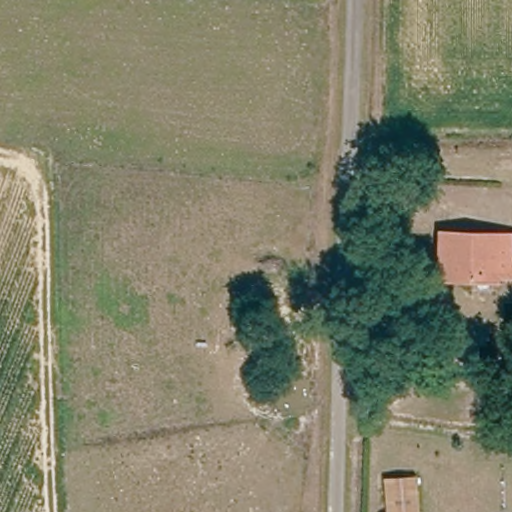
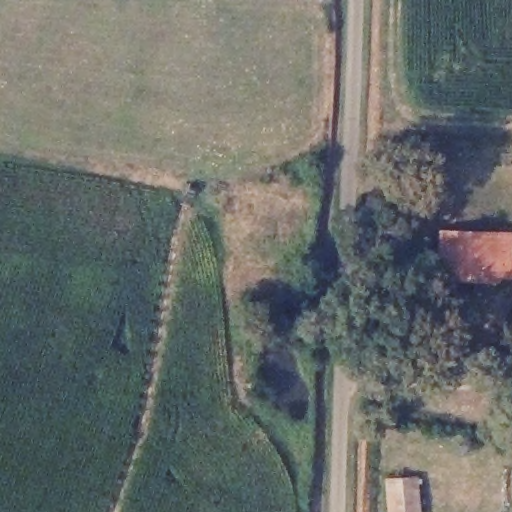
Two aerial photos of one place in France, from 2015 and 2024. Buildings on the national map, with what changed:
unchanged [(479,278),(440,276),(442,230),(512,233),(512,273),(497,272),(496,285),(478,283),(479,278)]
unchanged [(392,482),(418,482),(419,512),(392,512),(392,482)]

